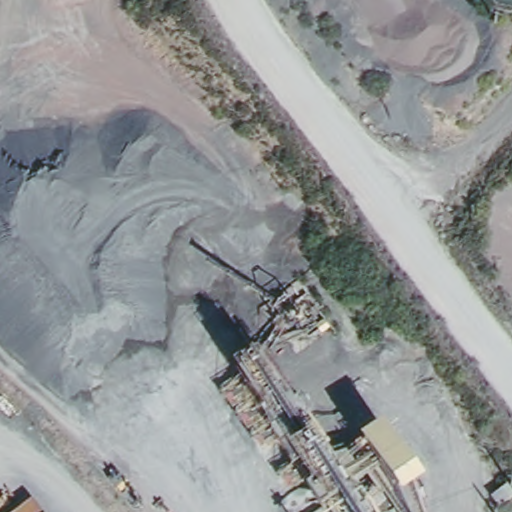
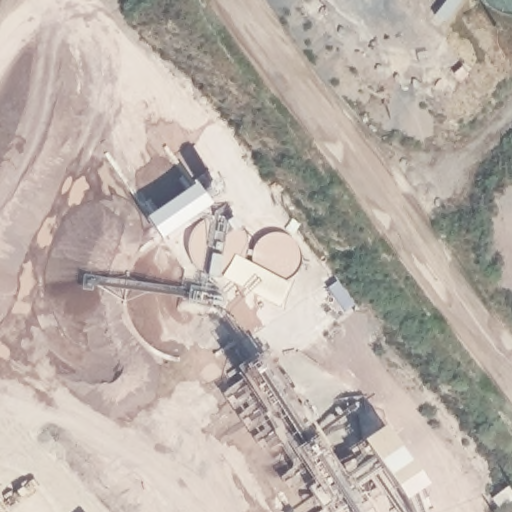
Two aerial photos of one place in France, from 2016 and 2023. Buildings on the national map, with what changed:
new [(144,212),(195,177),(211,199),(160,235),(144,212)]
unchanged [(301,404),(357,498),(338,512),(322,512),(236,368),(260,356),(290,409),(301,404)]
unchanged [(414,473),(392,487),(359,442),(380,427),(414,473)]

